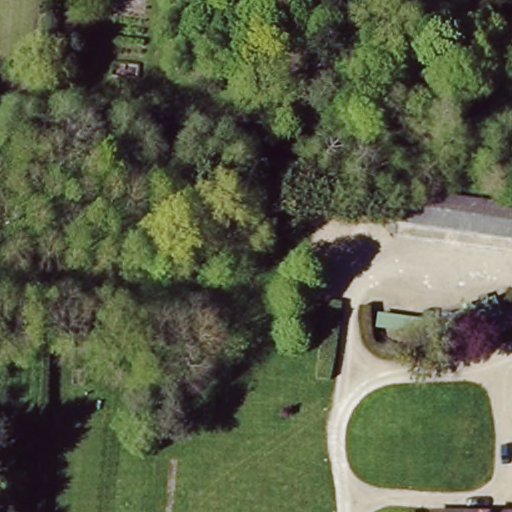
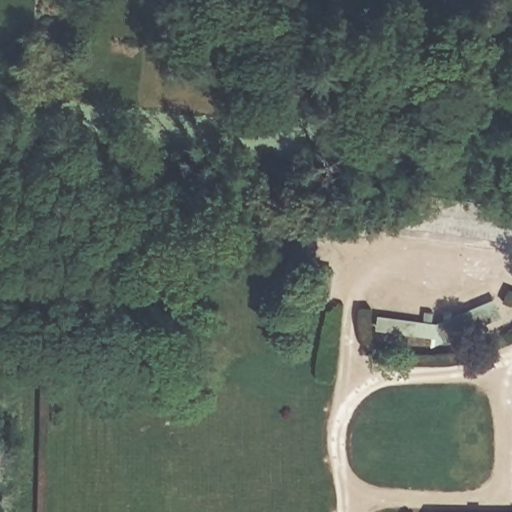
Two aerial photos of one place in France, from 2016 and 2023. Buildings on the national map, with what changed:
unchanged [(512,219),(512,250),(398,235),(402,205),(512,219)]

